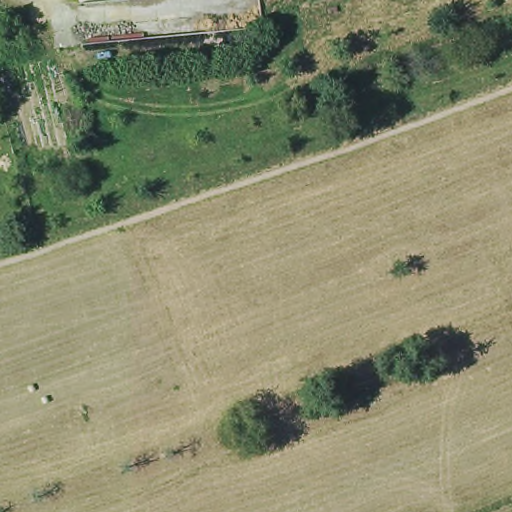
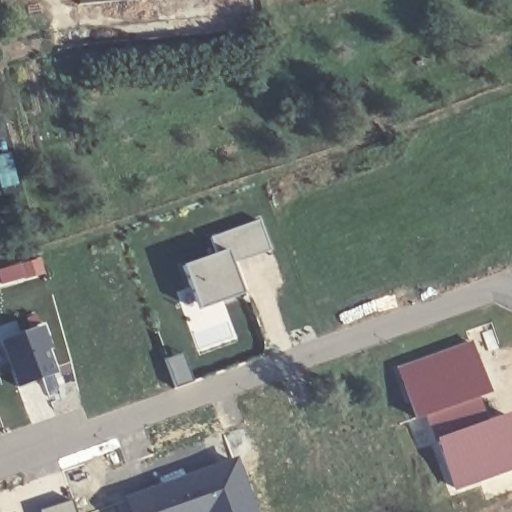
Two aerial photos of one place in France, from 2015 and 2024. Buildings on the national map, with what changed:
new [(272,251),(235,263),(245,295),(196,312),(181,267),(217,254),(212,237),(260,219),(272,251)]
new [(46,326),(54,347),(48,350),(55,374),(18,388),(1,342),(46,326)]
new [(481,396),(489,421),(512,414),(512,473),(455,492),(427,416),(416,420),(397,368),(473,342),(493,392),(481,396)]
new [(237,457),(259,512),(126,512),(122,498),(237,457)]
new [(73,500),(77,512),(39,512),(39,511),(73,500)]

